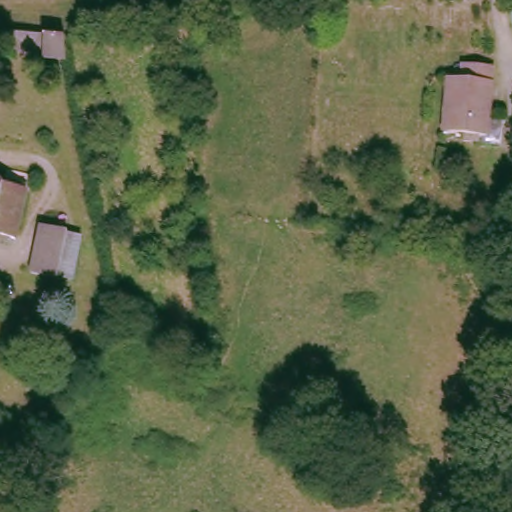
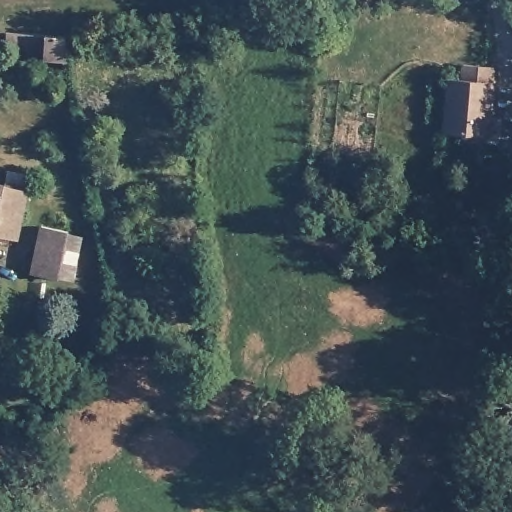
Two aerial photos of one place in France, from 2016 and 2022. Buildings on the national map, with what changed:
unchanged [(67,54),(45,54),(46,45),(18,44),(18,31),(66,35),(67,54)]
unchanged [(464,135),(443,133),(447,77),(462,79),(463,64),(497,67),(492,137),(482,136),(481,146),(464,144),(464,135)]
unchanged [(15,239),(0,236),(0,185),(24,189),(15,239)]
unchanged [(38,267),(46,222),(73,227),(68,252),(78,255),(76,261),(79,269),(73,275),(38,267)]

